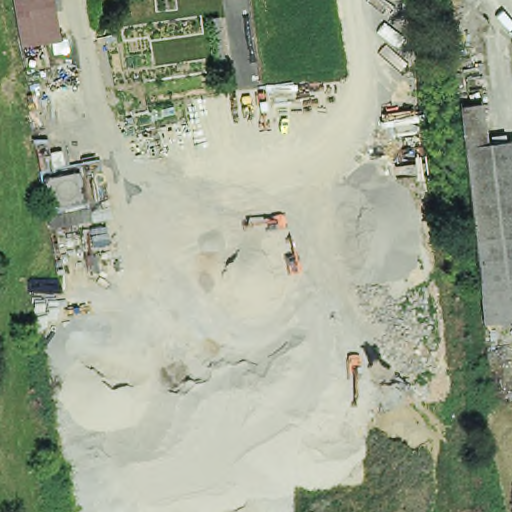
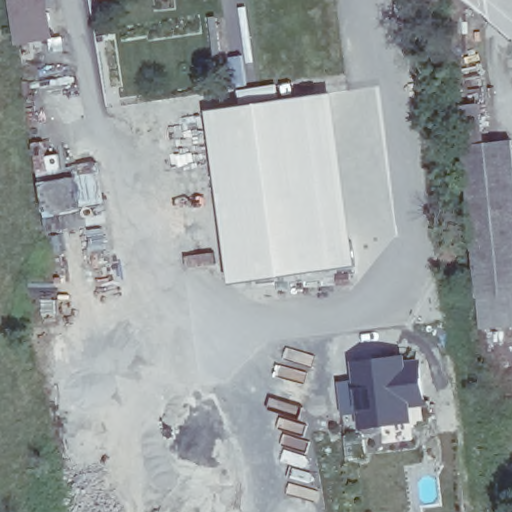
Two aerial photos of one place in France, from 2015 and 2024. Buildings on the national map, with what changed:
unchanged [(46,0),(53,46),(20,44),(12,0),(46,0)]
demolished [(226,65),(217,65),(210,15),(220,14),(226,65)]
demolished [(205,96),(190,99),(187,69),(200,67),(205,96)]
new [(344,92),(367,268),(239,281),(216,110),(344,92)]
unchanged [(45,219),(41,180),(37,180),(32,142),(48,140),(52,167),(99,160),(102,175),(80,179),(82,200),(103,197),(104,211),(45,219)]
unchanged [(500,325),(497,294),(479,296),(462,145),(512,140),(512,323),(500,325)]
new [(419,360),(432,360),(437,408),(425,408),(426,422),(371,430),(364,360),(417,354),(419,360)]

